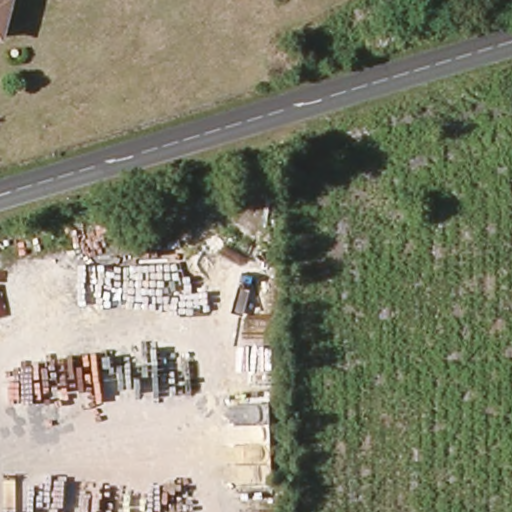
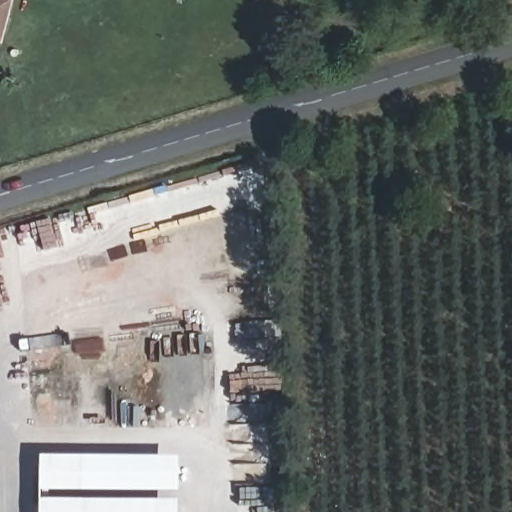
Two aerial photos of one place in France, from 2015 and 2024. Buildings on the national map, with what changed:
unchanged [(0,13),(0,0),(3,0),(0,13)]
new [(180,492),(41,490),(41,457),(180,459),(180,492)]
new [(179,501),(179,512),(40,512),(40,501),(179,501)]

